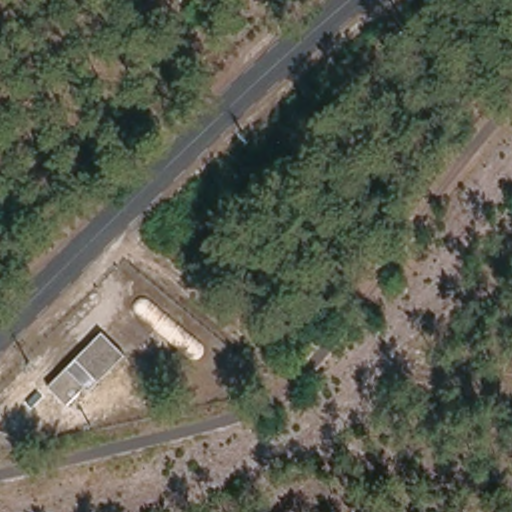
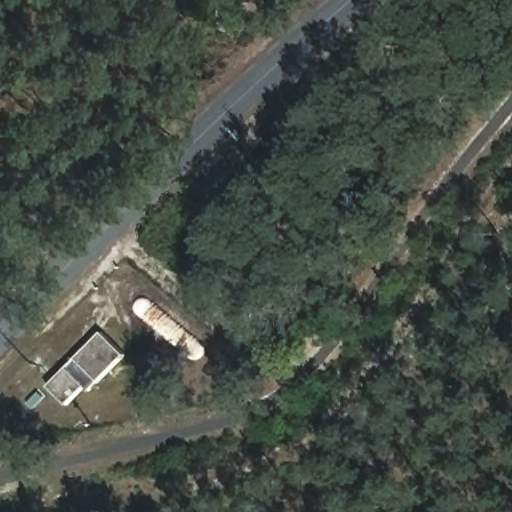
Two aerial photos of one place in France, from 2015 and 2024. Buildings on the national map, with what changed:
unchanged [(98,338),(126,361),(88,402),(79,395),(68,405),(49,386),(98,338)]

